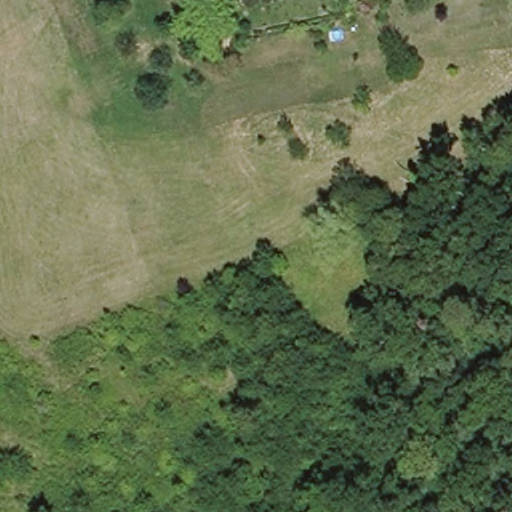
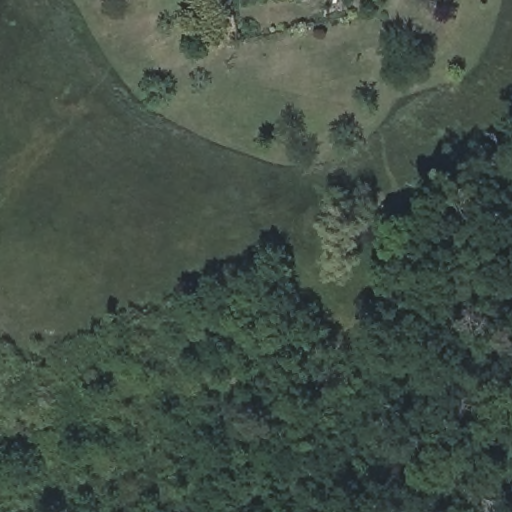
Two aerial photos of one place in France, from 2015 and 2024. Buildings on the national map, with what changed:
[]

